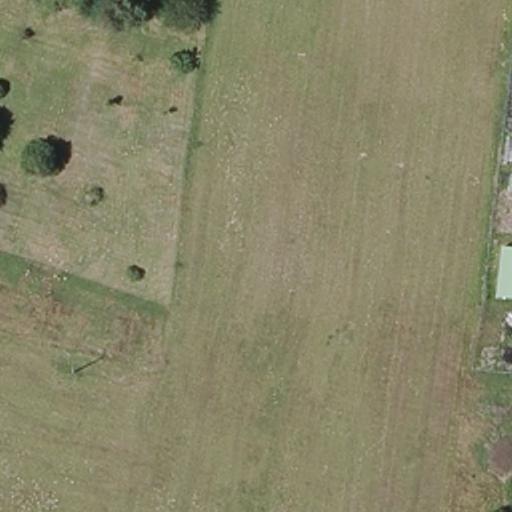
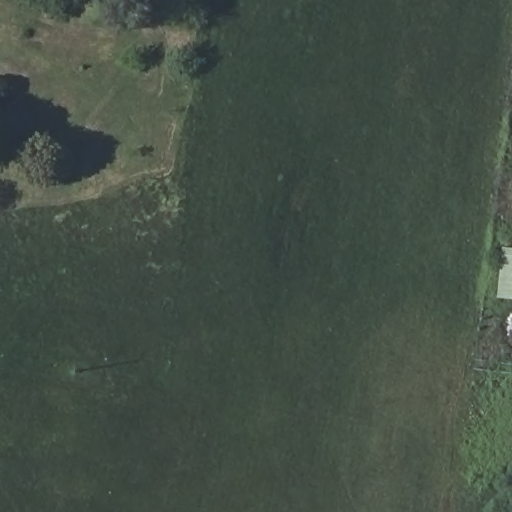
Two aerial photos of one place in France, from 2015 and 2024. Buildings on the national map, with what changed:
unchanged [(512,301),(505,300),(512,251),(512,301)]

